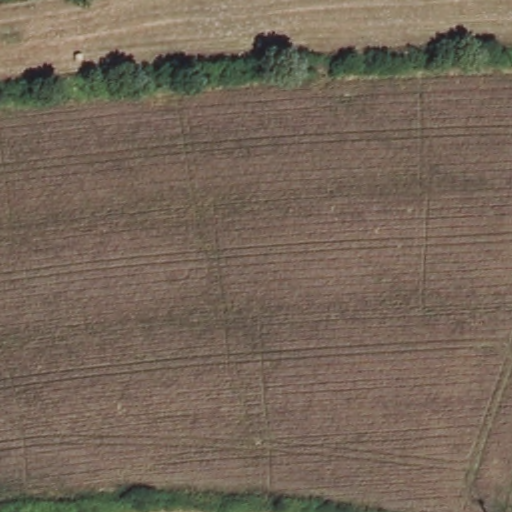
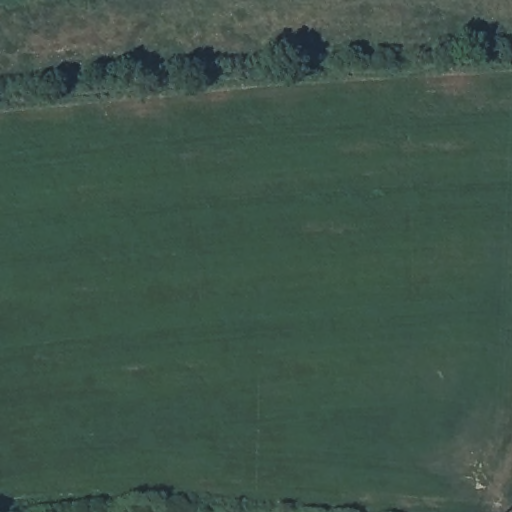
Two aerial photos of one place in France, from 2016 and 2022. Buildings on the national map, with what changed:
[]

